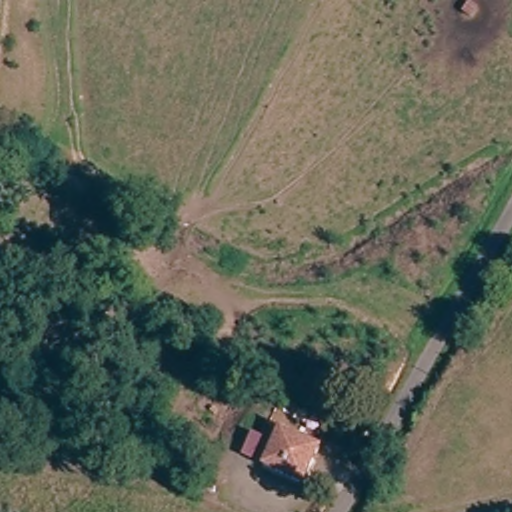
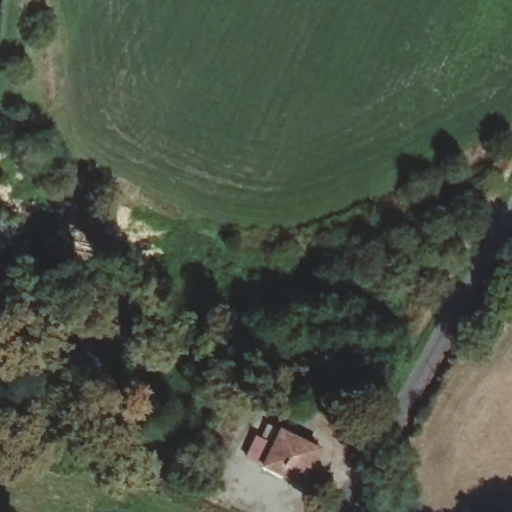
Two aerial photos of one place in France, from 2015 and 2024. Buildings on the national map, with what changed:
unchanged [(267,421),(277,427),(279,424),(318,443),(302,479),(245,453),(256,432),(260,435),(267,421)]

